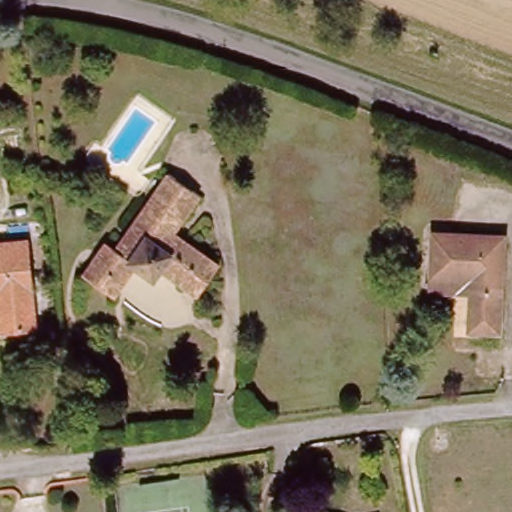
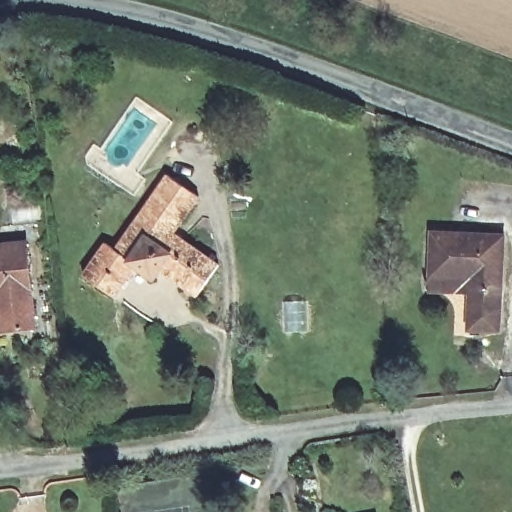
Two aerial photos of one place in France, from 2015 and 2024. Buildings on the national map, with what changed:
unchanged [(179,232),(224,263),(203,293),(165,268),(155,281),(135,268),(114,295),(86,278),(104,250),(116,254),(166,179),(202,200),(179,232)]
unchanged [(428,280),(426,234),(504,234),(507,333),(467,335),(466,297),(430,296),(428,280)]
unchanged [(37,328),(0,331),(0,328),(0,250),(4,246),(26,246),(37,328)]

